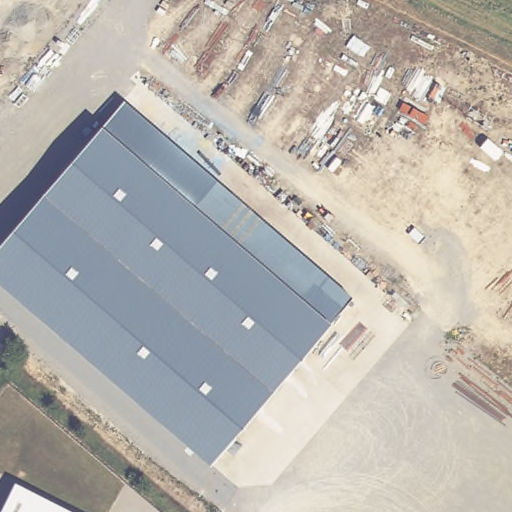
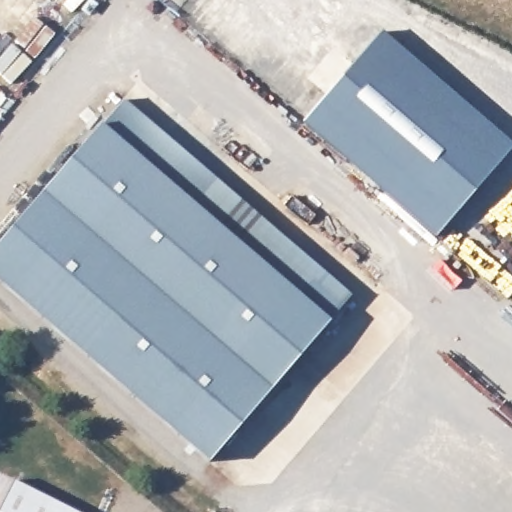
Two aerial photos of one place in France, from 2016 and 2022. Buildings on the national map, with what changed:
new [(512,146),(512,149),(435,239),(301,124),(380,31),(512,146)]
unchanged [(103,124),(124,100),(351,295),(330,322),(103,124)]
unchanged [(103,124),(330,322),(209,462),(0,283),(0,246),(103,124)]
unchanged [(77,512),(0,512),(16,481),(77,512)]

